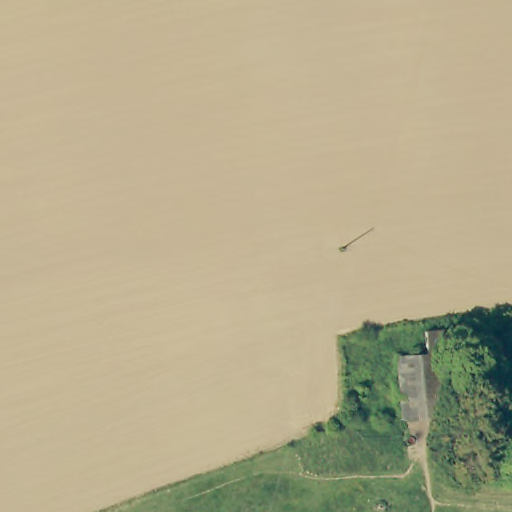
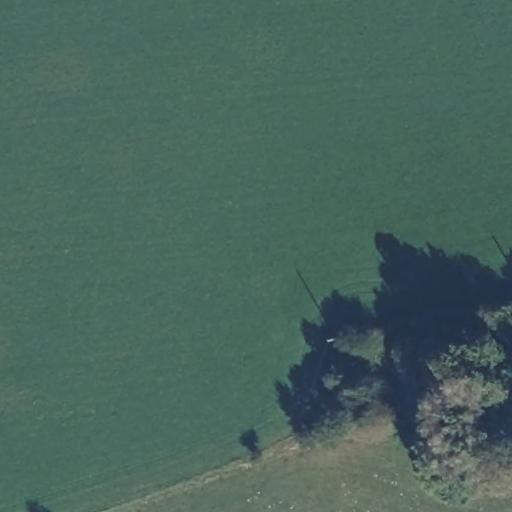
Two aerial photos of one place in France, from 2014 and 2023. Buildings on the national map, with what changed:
unchanged [(428,352),(426,328),(453,325),(462,412),(404,418),(398,355),(428,352)]

